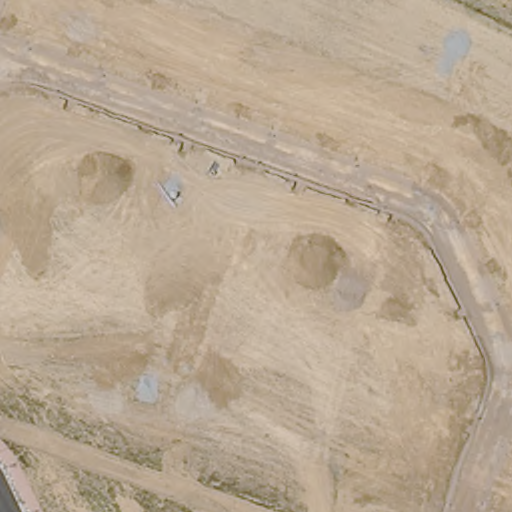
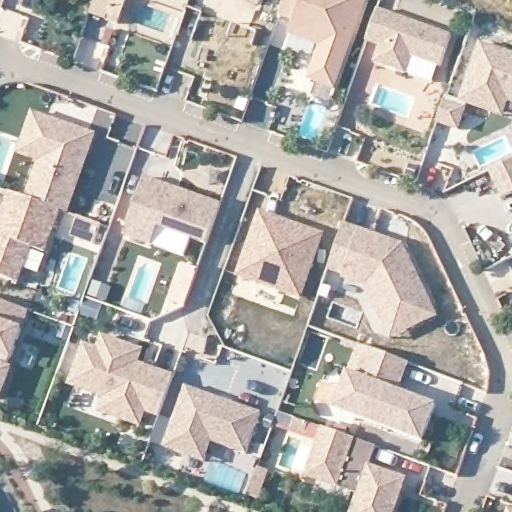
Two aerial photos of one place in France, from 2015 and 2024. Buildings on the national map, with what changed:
new [(126,2),(119,22),(108,18),(115,0),(121,0),(126,2)]
new [(183,1),(179,0),(184,0),(183,1)]
new [(265,11),(235,0),(269,0),(265,11)]
new [(289,49),(295,32),(291,31),(296,19),(282,14),(287,0),(368,0),(336,86),(313,78),(324,44),(320,41),(314,58),(289,49)]
new [(386,17),(460,45),(449,75),(419,65),(413,82),(382,71),(389,54),(374,48),(386,17)]
new [(499,122),(468,111),(489,54),(512,62),(512,121),(510,126),(499,122)]
new [(34,156),(20,150),(35,110),(49,115),(96,133),(89,152),(85,164),(68,210),(28,195),(41,158),(34,156)]
new [(510,205),(497,178),(512,171),(512,204),(510,205)]
new [(164,183),(178,189),(221,205),(207,244),(158,226),(152,244),(124,234),(146,176),(164,183)]
unchanged [(61,208),(45,250),(31,245),(18,280),(0,274),(0,218),(10,189),(61,208)]
new [(238,276),(259,211),(326,235),(303,301),(238,276)]
new [(391,340),(368,286),(341,278),(344,275),(329,270),(346,223),(404,245),(439,317),(391,340)]
new [(184,260),(196,265),(181,310),(168,305),(184,260)]
new [(14,371),(17,372),(6,400),(0,398),(0,302),(34,315),(14,371)]
new [(98,412),(103,397),(69,385),(83,342),(97,347),(100,335),(145,350),(140,363),(175,375),(160,417),(146,413),(141,428),(98,412)]
new [(336,409),(349,370),(359,375),(368,347),(411,364),(399,390),(437,405),(423,443),(336,409)]
new [(213,443),(206,462),(164,448),(184,385),(262,413),(248,455),(213,443)]
new [(311,421),(306,433),(292,427),(296,416),(311,421)]
new [(402,512),(360,512),(364,502),(323,487),(311,483),(321,455),(329,433),(381,455),(374,475),(384,479),(411,488),(406,500),(402,512)]
new [(254,458),(259,445),(266,447),(261,460),(254,458)]
new [(258,468),(269,472),(263,489),(259,501),(248,497),(252,485),(258,468)]
new [(512,510),(512,512),(508,512),(509,508),(512,510)]

